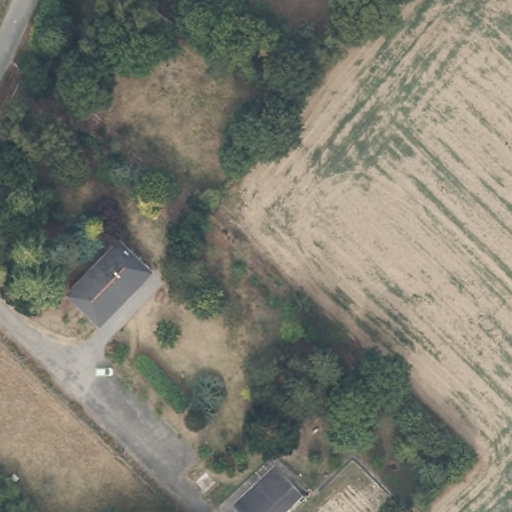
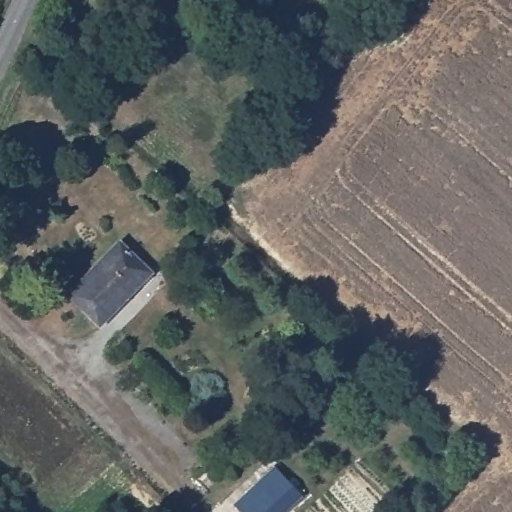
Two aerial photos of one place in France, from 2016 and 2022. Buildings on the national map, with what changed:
unchanged [(93,0),(91,3),(87,0),(93,0)]
unchanged [(133,9),(139,0),(143,0),(152,6),(156,0),(163,0),(185,16),(167,41),(141,21),(144,17),(133,9)]
unchanged [(98,322),(70,295),(121,243),(148,270),(98,322)]
unchanged [(285,512),(243,512),(237,505),(277,467),(303,495),(285,512)]

